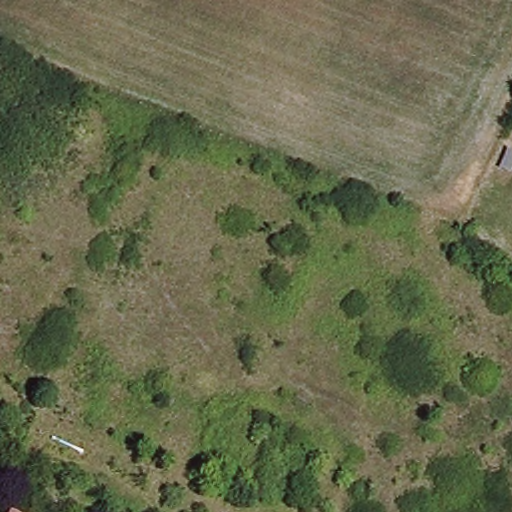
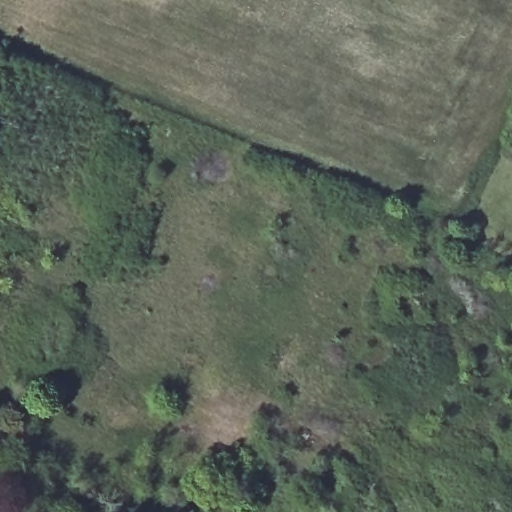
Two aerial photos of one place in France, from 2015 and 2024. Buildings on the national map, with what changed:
unchanged [(512,164),(509,170),(500,166),(509,148),(512,149),(512,164)]

